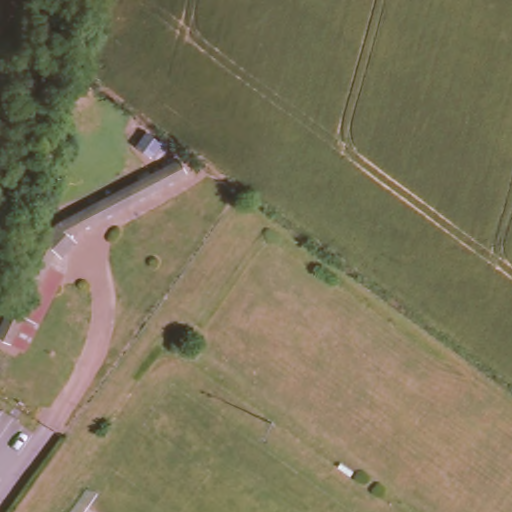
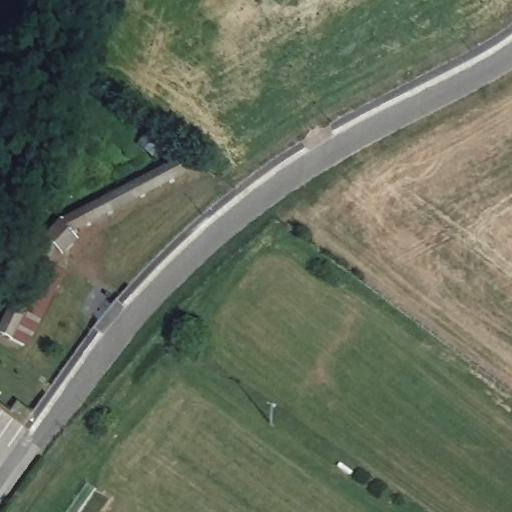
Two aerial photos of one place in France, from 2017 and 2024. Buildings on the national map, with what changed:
unchanged [(56,218),(177,157),(188,177),(71,237),(90,254),(76,273),(53,256),(13,344),(0,337),(0,315),(40,233),(56,218)]

